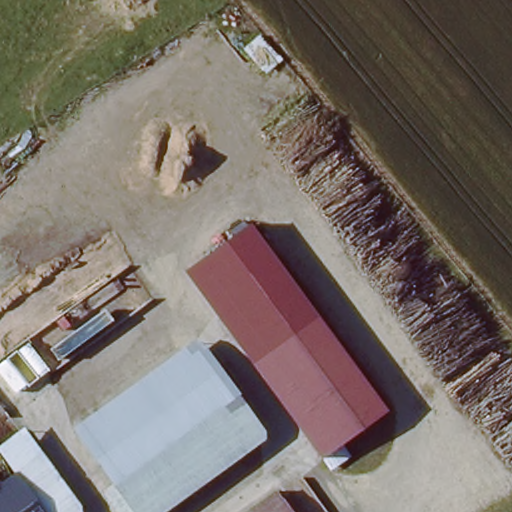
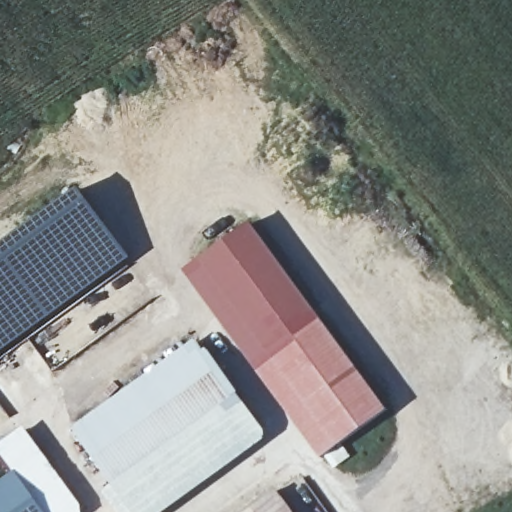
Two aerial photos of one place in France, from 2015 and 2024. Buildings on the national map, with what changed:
new [(21,226),(79,185),(134,260),(101,287),(14,351),(0,359),(0,241),(21,226)]
unchanged [(326,463),(183,273),(249,225),(385,413),(326,463)]
unchanged [(265,431),(156,512),(124,512),(112,494),(120,486),(81,434),(203,346),(265,431)]
unchanged [(49,512),(0,512),(0,482),(18,469),(49,512)]
unchanged [(295,512),(247,512),(279,490),(295,512)]

